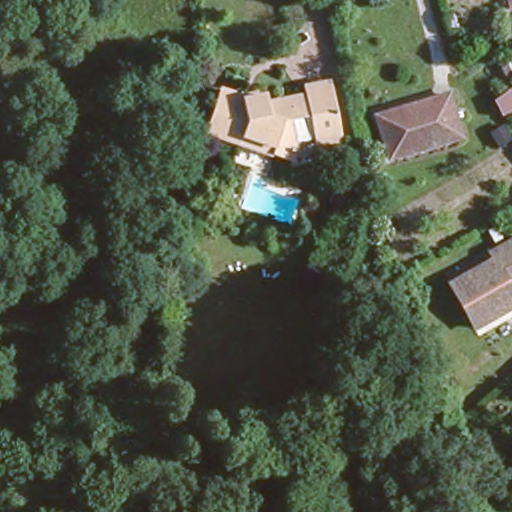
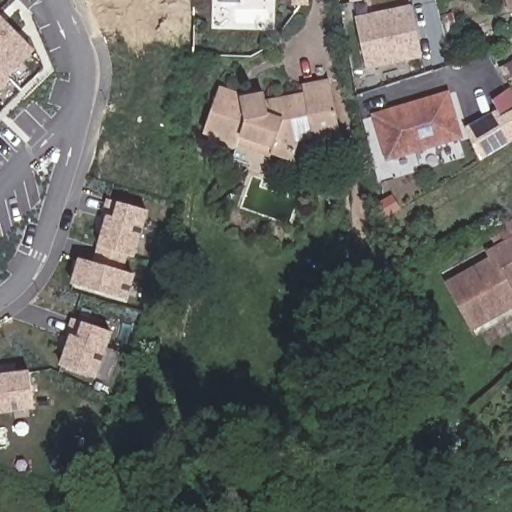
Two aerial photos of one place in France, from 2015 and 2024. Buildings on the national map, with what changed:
new [(353,0),(362,0),(353,2),(353,0)]
unchanged [(512,0),(512,3),(508,5),(507,0),(512,0)]
new [(412,6),(423,56),(367,68),(356,18),(412,6)]
unchanged [(458,29),(448,32),(443,17),(453,14),(458,29)]
new [(36,51),(10,77),(13,80),(0,92),(0,15),(36,51)]
unchanged [(501,69),(512,62),(512,77),(507,80),(501,69)]
unchanged [(261,98),(300,90),(299,82),(325,77),(337,135),(310,140),(309,134),(291,137),(285,156),(200,127),(214,87),(215,82),(235,88),(236,95),(260,90),(261,98)]
unchanged [(460,132),(388,154),(375,111),(448,89),(460,132)]
unchanged [(512,134),(498,142),(489,127),(503,119),(512,134)]
new [(80,257),(94,261),(98,245),(101,234),(97,232),(107,199),(118,202),(149,211),(135,257),(127,255),(123,270),(136,275),(128,301),(72,285),(80,257)]
unchanged [(512,301),(473,324),(448,278),(492,254),(489,247),(512,234),(512,282),(510,283),(512,287),(512,301)]
new [(83,322),(113,332),(97,378),(60,366),(64,353),(59,351),(72,318),(83,322)]
new [(15,367),(16,372),(29,371),(35,410),(0,414),(0,370),(15,367)]

